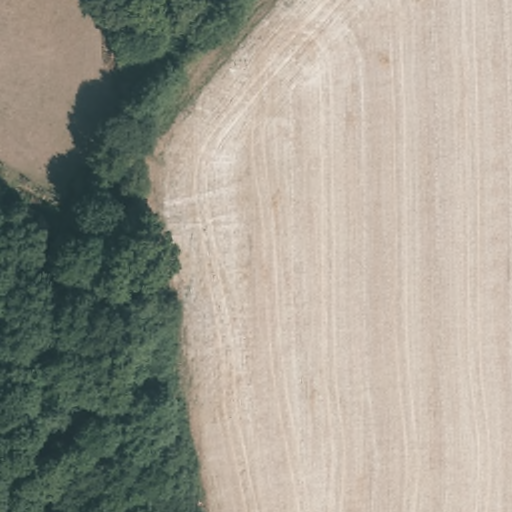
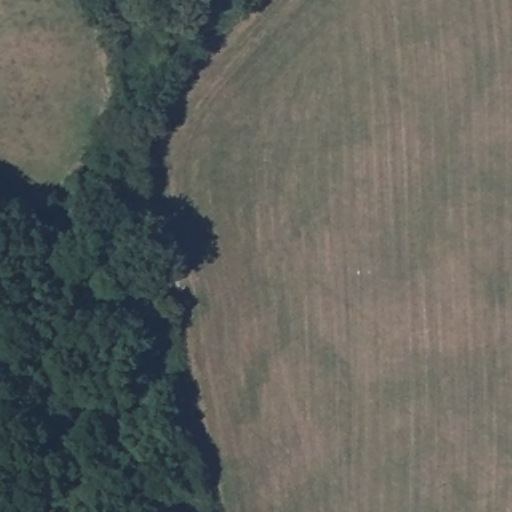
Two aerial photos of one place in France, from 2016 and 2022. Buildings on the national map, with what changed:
[]

